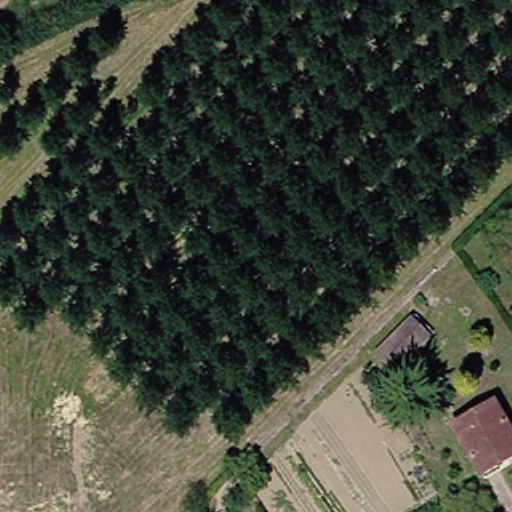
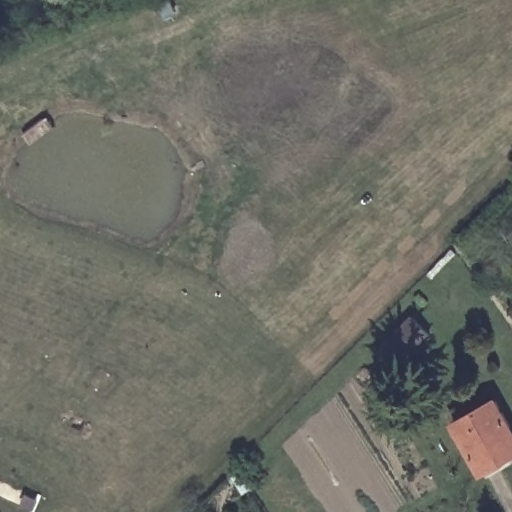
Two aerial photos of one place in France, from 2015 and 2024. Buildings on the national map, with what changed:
unchanged [(385,371),(366,353),(402,316),(420,333),(385,371)]
unchanged [(470,467),(445,424),(485,400),(508,445),(470,467)]

